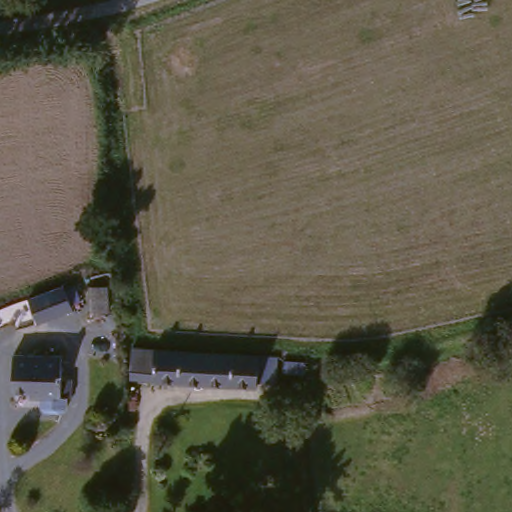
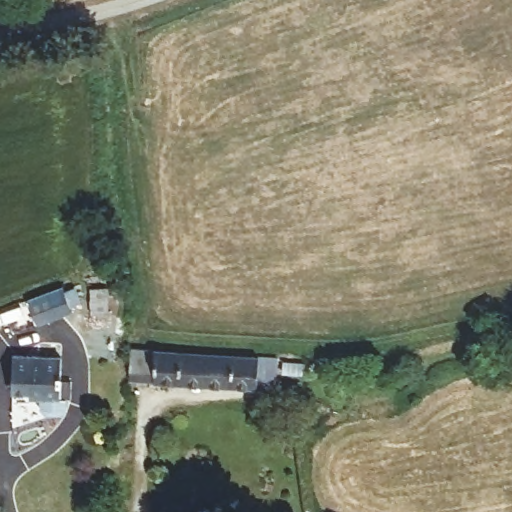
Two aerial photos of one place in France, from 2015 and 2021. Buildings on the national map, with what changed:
unchanged [(108,312),(91,312),(90,287),(106,286),(108,312)]
unchanged [(64,291),(70,306),(61,310),(62,314),(26,328),(17,305),(53,290),(54,295),(64,291)]
unchanged [(276,385),(256,384),(256,391),(128,384),(131,353),(258,361),(258,362),(278,365),(276,385)]
unchanged [(61,356),(60,397),(29,396),(29,391),(11,391),(13,355),(61,356)]
unchanged [(282,376),(283,365),(304,367),(303,378),(282,376)]

